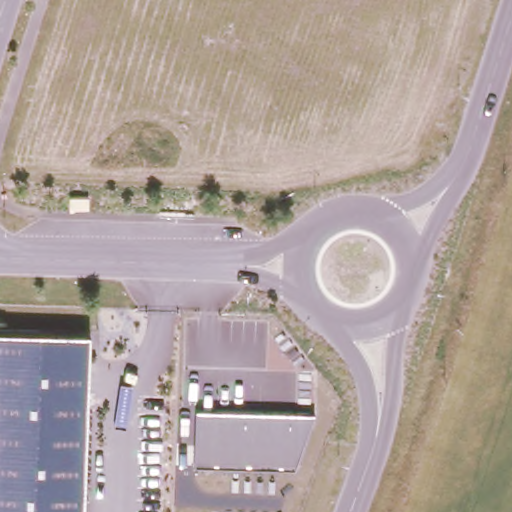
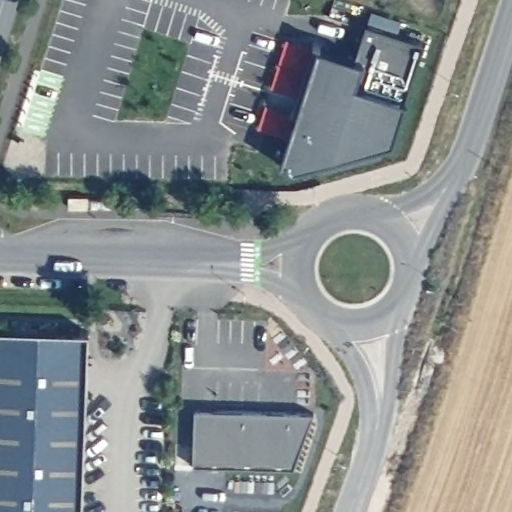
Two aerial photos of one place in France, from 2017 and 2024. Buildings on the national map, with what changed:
new [(357,65),(368,31),(428,49),(396,149),(297,172),(281,170),(320,54),(357,65)]
new [(88,211),(69,210),(69,200),(88,201),(88,211)]
unchanged [(80,512),(0,512),(0,325),(85,326),(80,512)]
unchanged [(192,462),(195,408),(313,412),(292,465),(192,462)]

